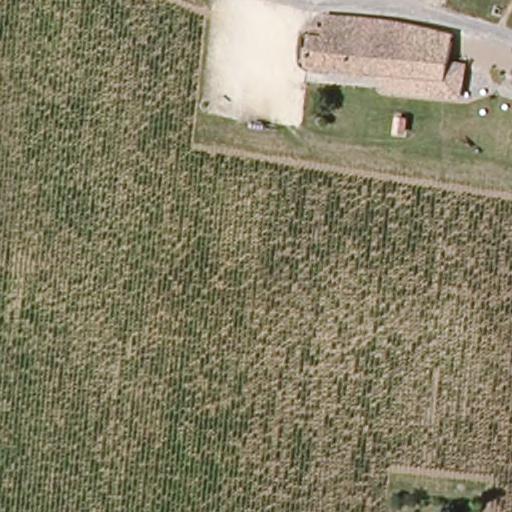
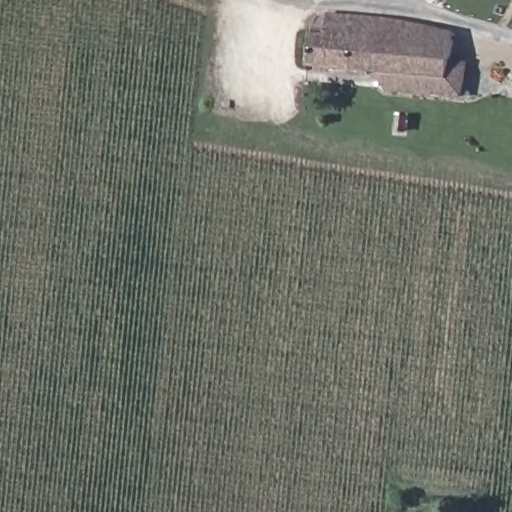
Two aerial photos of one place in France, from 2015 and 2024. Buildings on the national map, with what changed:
unchanged [(459,81),(325,72),(326,40),(338,41),(338,35),(329,35),(326,32),(324,28),(325,25),(330,21),(404,24),(467,39),(459,81)]

